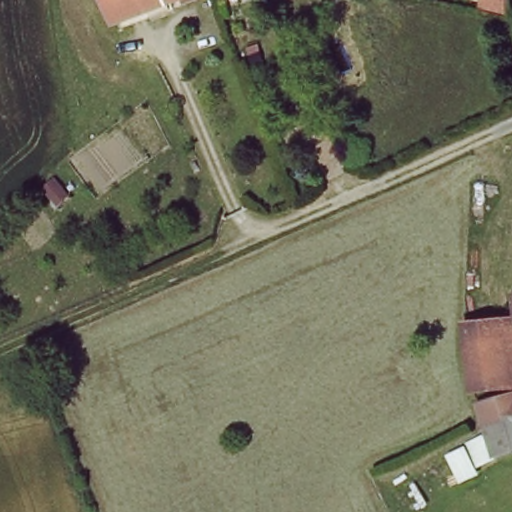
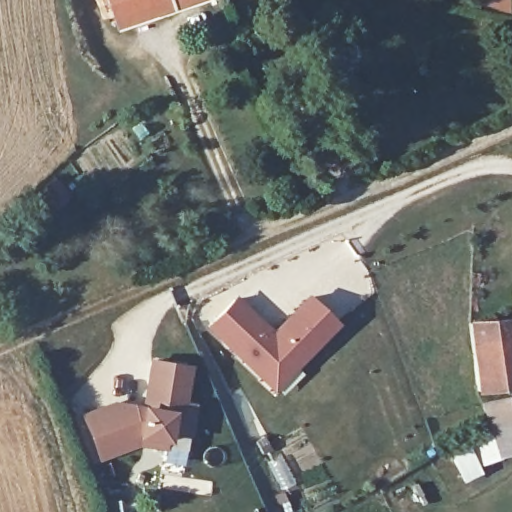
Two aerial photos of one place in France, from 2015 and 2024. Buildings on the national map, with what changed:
unchanged [(123,22),(113,0),(191,0),(123,22)]
new [(234,294),(271,329),(306,293),(339,323),(274,391),(204,326),(234,294)]
unchanged [(478,356),(473,330),(512,314),(512,342),(478,356)]
unchanged [(512,342),(512,397),(488,400),(478,356),(512,342)]
new [(191,366),(184,402),(194,403),(189,436),(186,436),(184,450),(164,447),(164,449),(138,445),(99,460),(81,413),(113,399),(140,404),(147,358),(191,366)]
unchanged [(509,469),(501,472),(494,474),(482,445),(488,441),(498,435),(497,434),(489,409),(496,408),(504,407),(512,406),(512,468),(509,469)]

